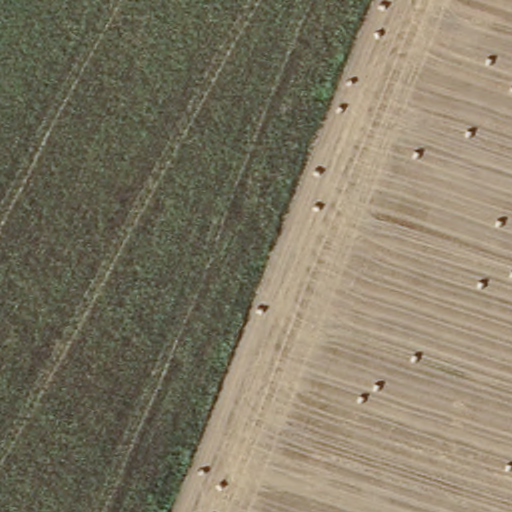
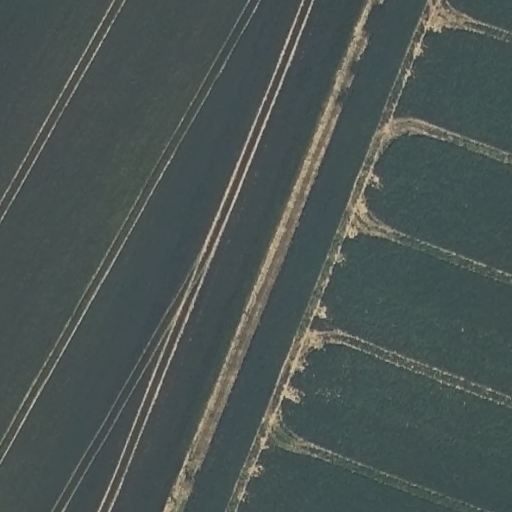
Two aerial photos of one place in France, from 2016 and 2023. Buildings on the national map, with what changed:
[]

